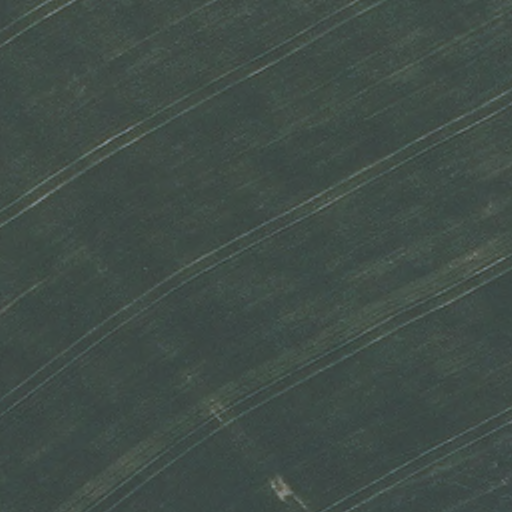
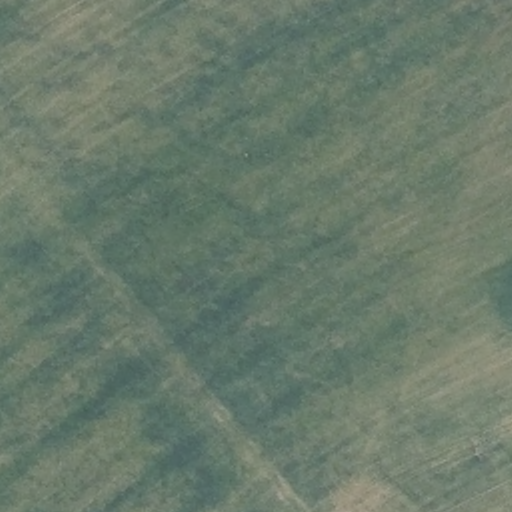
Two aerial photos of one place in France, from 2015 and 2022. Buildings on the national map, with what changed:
[]

